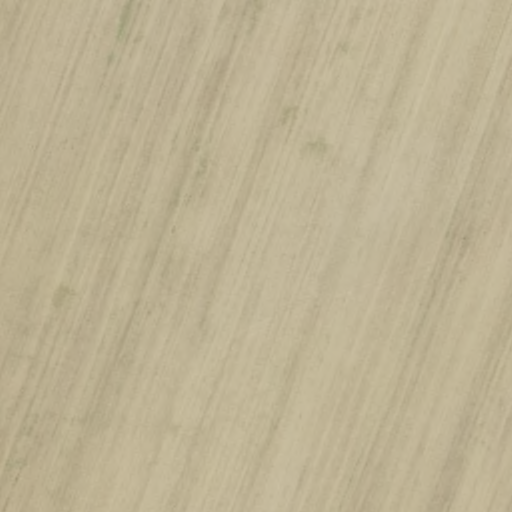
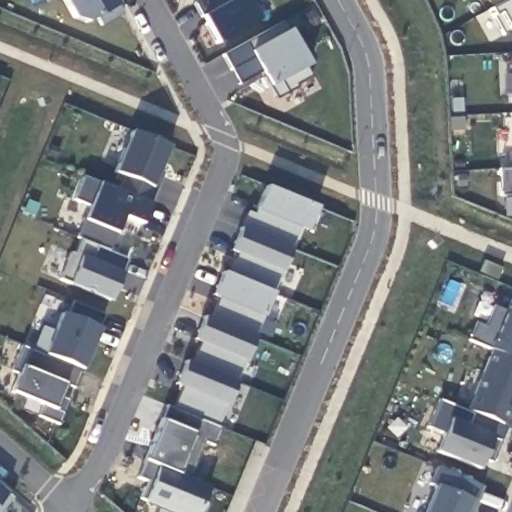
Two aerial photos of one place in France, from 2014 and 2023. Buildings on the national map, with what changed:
new [(48,2),(46,0),(51,0),(48,2)]
new [(122,13),(100,25),(95,17),(86,22),(73,17),(63,0),(115,0),(122,13)]
new [(258,23),(217,44),(201,15),(192,2),(195,0),(248,0),(258,23)]
new [(499,12),(493,15),(490,9),(507,0),(512,0),(512,28),(509,29),(499,12)]
new [(231,70),(222,55),(284,21),(308,64),(305,66),(311,76),(296,85),(297,88),(276,99),(263,77),(267,75),(265,70),(239,85),(231,70)]
new [(131,131),(168,146),(157,171),(162,173),(149,203),(117,190),(123,176),(114,172),(131,131)]
new [(498,169),(512,168),(512,196),(499,196),(498,169)]
new [(149,203),(143,224),(125,216),(116,234),(109,250),(128,258),(111,300),(61,280),(87,221),(83,219),(89,206),(76,201),(87,176),(101,182),(117,190),(149,203)]
new [(308,231),(301,228),(292,248),(226,406),(218,425),(223,428),(214,446),(203,442),(187,479),(175,473),(145,461),(162,420),(168,405),(174,408),(181,388),(175,386),(184,361),(193,364),(201,343),(193,341),(203,316),(212,319),(220,299),(211,296),(220,272),(229,275),(237,254),(230,250),(239,227),(246,209),(254,213),(264,185),(317,207),(308,231)]
new [(483,326),(492,305),(505,311),(509,300),(512,301),(512,360),(491,351),(467,340),(474,322),(483,326)]
new [(101,328),(83,370),(75,390),(65,385),(61,394),(70,399),(61,424),(38,415),(43,404),(10,391),(19,369),(14,367),(23,345),(45,354),(63,313),(68,316),(74,303),(105,316),(101,328)]
new [(512,360),(512,397),(501,425),(473,413),(466,411),(491,351),(512,360)]
new [(448,419),(467,427),(473,413),(501,425),(505,427),(490,463),(481,459),(477,469),(435,452),(448,419)]
new [(207,487),(200,504),(204,506),(202,512),(169,512),(137,498),(142,487),(147,489),(149,483),(135,477),(142,460),(207,487)]
new [(428,484),(434,468),(481,487),(474,503),(469,501),(465,512),(423,512),(434,486),(428,484)]
new [(3,491),(11,500),(3,512),(0,512),(0,489),(3,491)]

